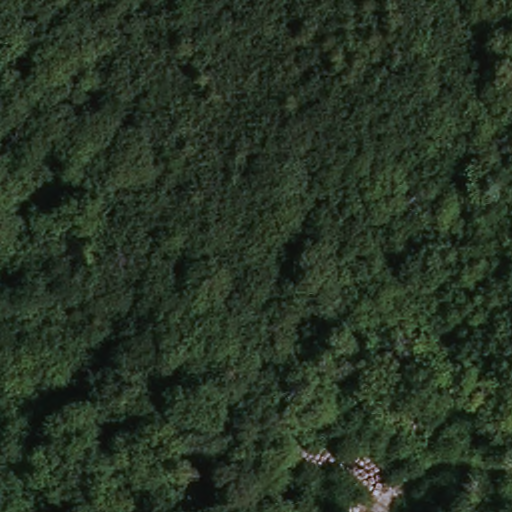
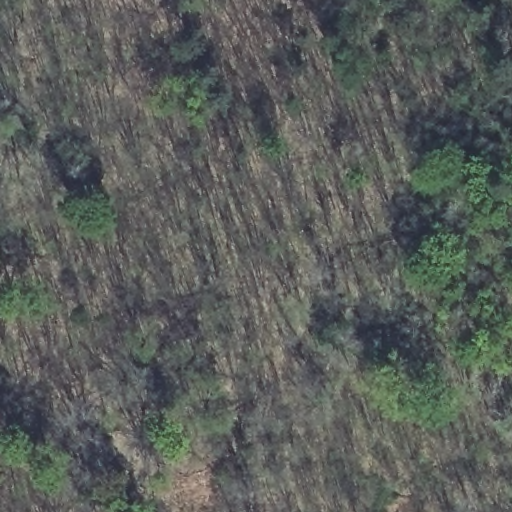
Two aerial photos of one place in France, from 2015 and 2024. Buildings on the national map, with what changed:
[]

